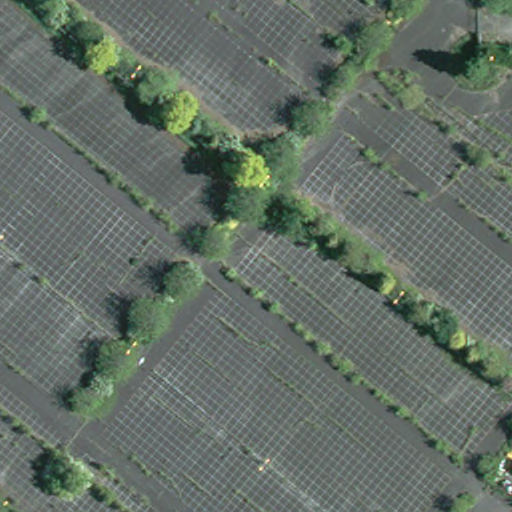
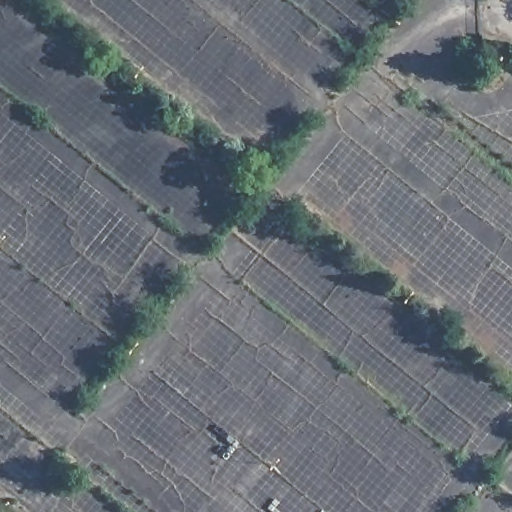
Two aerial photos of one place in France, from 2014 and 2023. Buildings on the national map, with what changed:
[]

